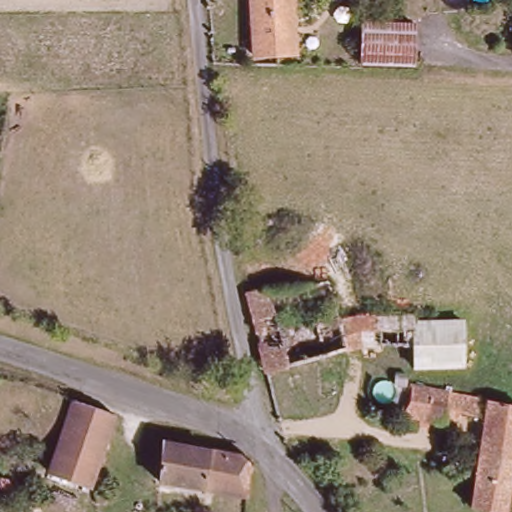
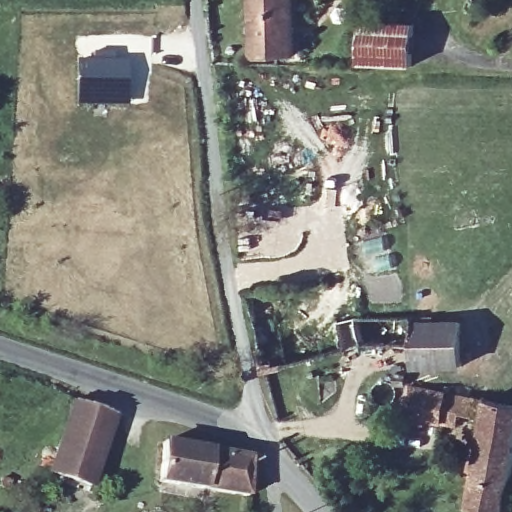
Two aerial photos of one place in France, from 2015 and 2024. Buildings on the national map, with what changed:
unchanged [(258,64),(256,0),(294,0),(297,62),(258,64)]
unchanged [(362,25),(410,24),(411,64),(362,65),(362,25)]
new [(75,60),(124,60),(124,106),(74,105),(75,60)]
unchanged [(338,357),(268,372),(250,294),(330,280),(339,322),(415,315),(414,327),(464,326),(467,368),(421,372),(415,346),(338,357)]
unchanged [(512,408),(512,472),(506,512),(472,512),(485,421),(459,417),(458,427),(402,418),(407,390),(512,408)]
unchanged [(89,485),(46,471),(68,403),(111,416),(89,485)]
unchanged [(247,460),(244,497),(157,485),(161,445),(247,460)]

